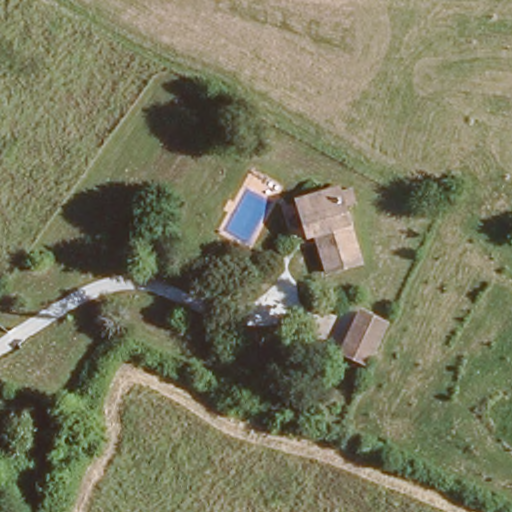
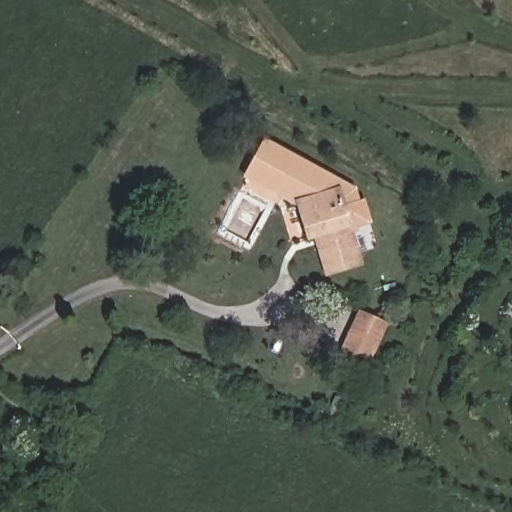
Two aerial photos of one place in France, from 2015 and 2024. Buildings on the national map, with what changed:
new [(242,177),(263,138),(356,187),(359,200),(365,199),(371,223),(349,229),(336,186),(296,198),(299,207),(242,177)]
unchanged [(336,186),(358,260),(323,270),(313,236),(308,238),(296,198),(336,186)]
unchanged [(365,357),(340,346),(360,307),(384,318),(365,357)]

